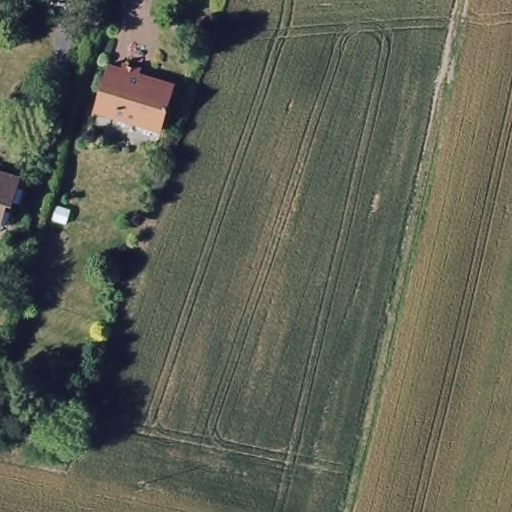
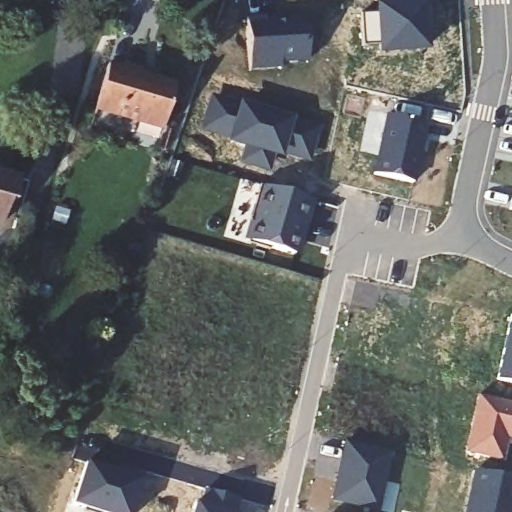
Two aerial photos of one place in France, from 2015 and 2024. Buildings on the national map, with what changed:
new [(424,49),(379,52),(379,46),(361,47),(359,15),(377,14),(376,8),(421,4),(424,49)]
new [(245,19),(264,18),(264,21),(275,21),(275,22),(286,22),(287,19),(305,19),(307,61),(279,63),(279,68),(248,70),(245,19)]
unchanged [(93,108),(105,64),(118,68),(119,65),(140,71),(138,79),(150,83),(151,80),(173,88),(160,130),(93,108)]
new [(315,130),(306,159),(272,149),(266,168),(242,161),(247,146),(230,142),(234,130),(207,122),(213,101),(315,130)]
new [(424,126),(411,186),(372,177),(386,118),(424,126)]
unchanged [(12,200),(7,199),(1,220),(0,220),(0,172),(20,178),(12,200)]
new [(311,204),(303,232),(300,231),(292,258),(269,251),(267,253),(246,247),(252,227),(248,225),(258,189),(311,204)]
new [(507,210),(510,195),(512,196),(512,211),(507,210)]
new [(512,319),(512,387),(495,383),(510,319),(512,319)]
new [(477,395),(512,404),(512,440),(507,438),(502,461),(465,453),(477,395)]
new [(376,512),(374,512),(332,502),(345,444),(389,454),(376,512)]
new [(103,473),(117,477),(117,476),(138,482),(129,512),(81,512),(82,510),(70,506),(84,464),(104,471),(103,473)]
new [(512,480),(512,512),(464,512),(473,470),(512,480)]
new [(200,503),(205,489),(239,499),(236,512),(190,512),(193,502),(200,503)]

